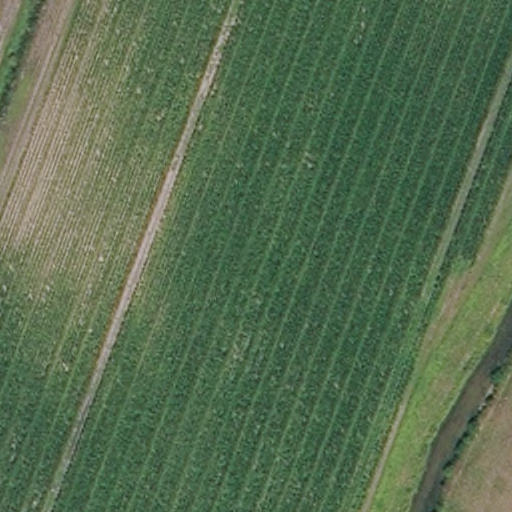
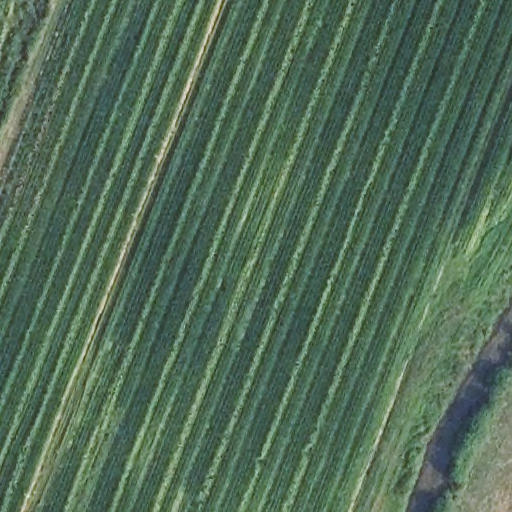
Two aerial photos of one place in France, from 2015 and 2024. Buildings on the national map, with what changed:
[]

